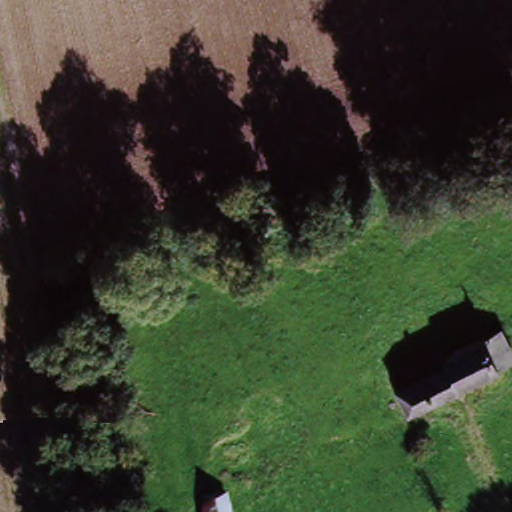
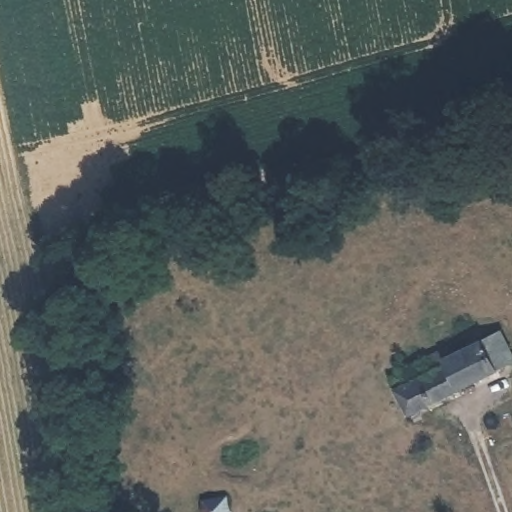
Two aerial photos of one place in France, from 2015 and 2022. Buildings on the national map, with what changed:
unchanged [(441,369),(498,342),(512,370),(512,372),(408,421),(390,386),(436,364),(441,369)]
unchanged [(227,503),(228,512),(205,512),(204,506),(227,503)]

